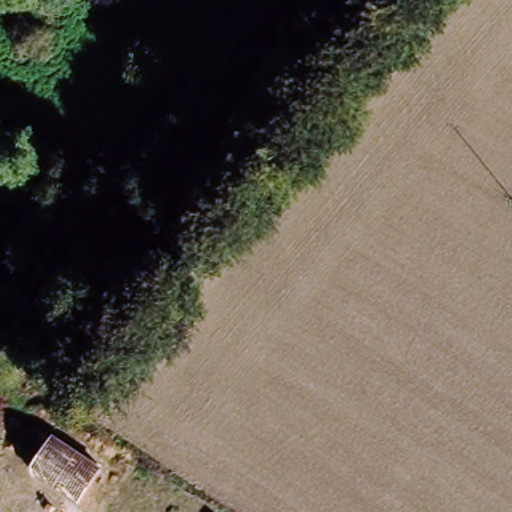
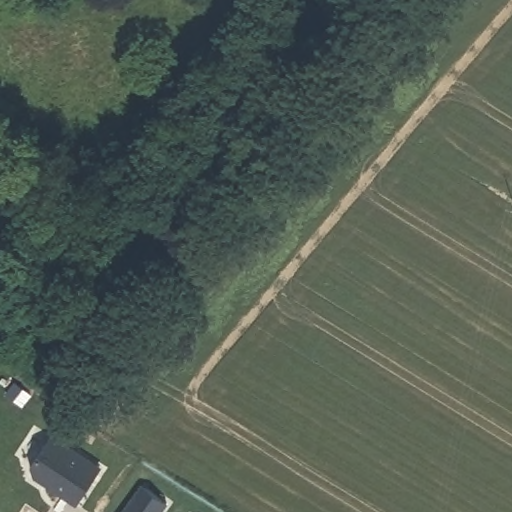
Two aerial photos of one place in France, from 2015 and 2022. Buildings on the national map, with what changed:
unchanged [(154,248),(133,233),(148,213),(169,228),(154,248)]
unchanged [(1,254),(0,255),(0,252),(1,254)]
unchanged [(28,469),(54,435),(101,468),(76,504),(28,469)]
new [(170,505),(164,512),(120,512),(141,485),(170,505)]

